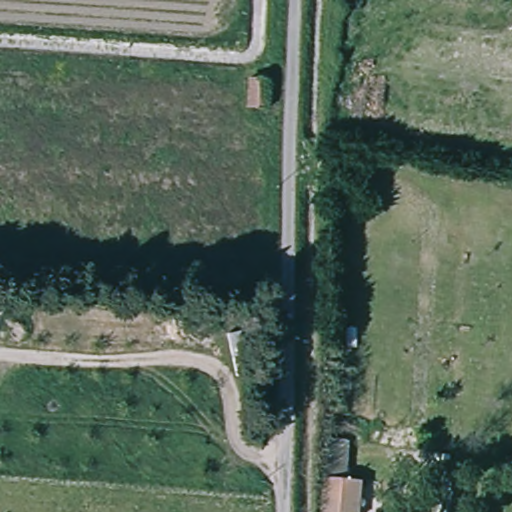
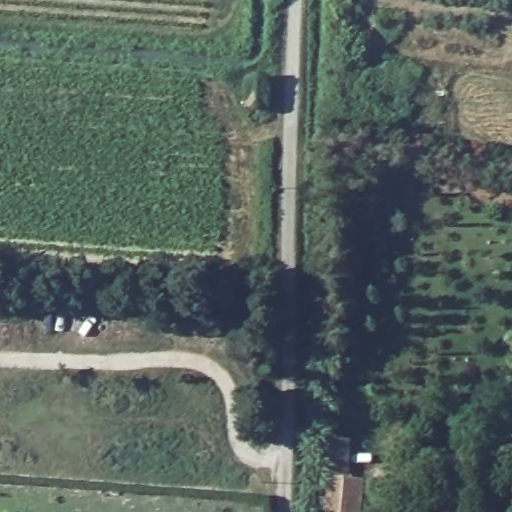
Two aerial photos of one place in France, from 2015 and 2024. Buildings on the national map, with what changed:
unchanged [(266,110),(246,109),(249,81),(268,83),(266,110)]
unchanged [(354,437),(351,475),(367,476),(363,512),(329,512),(334,435),(354,437)]

